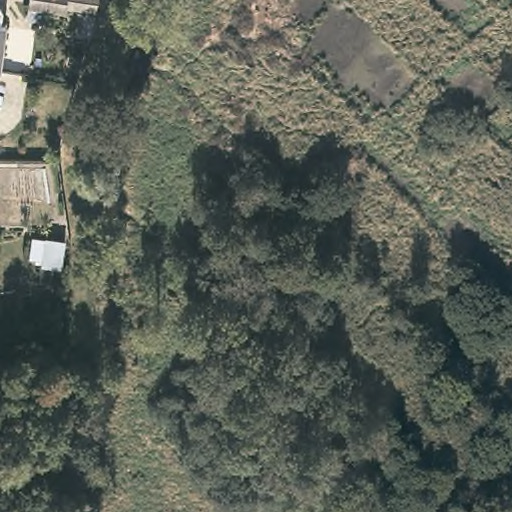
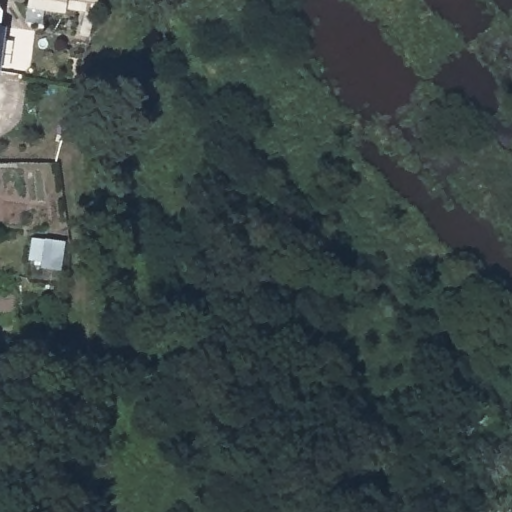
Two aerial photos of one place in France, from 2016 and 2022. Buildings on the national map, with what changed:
unchanged [(99,17),(66,11),(65,17),(30,12),(32,0),(101,0),(99,17)]
unchanged [(3,11),(0,26),(6,27),(0,67),(0,7),(3,11)]
unchanged [(65,241),(63,270),(40,267),(41,260),(29,258),(31,238),(65,241)]

